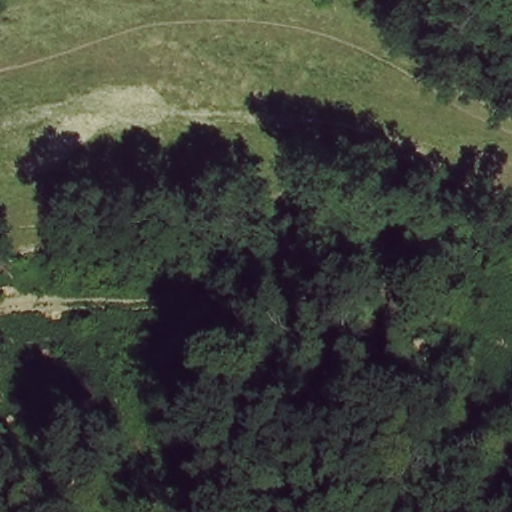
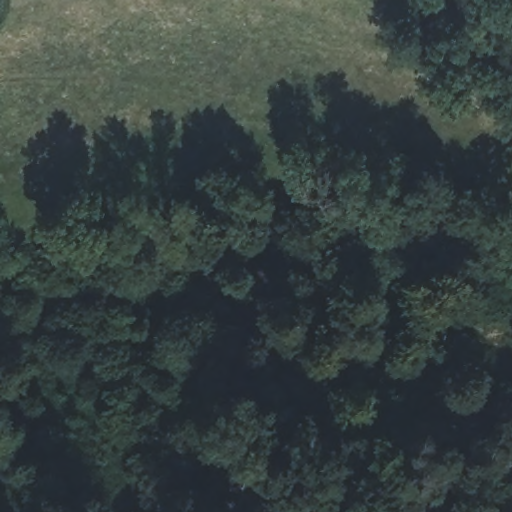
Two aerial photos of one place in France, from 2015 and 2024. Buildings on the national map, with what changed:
[]

